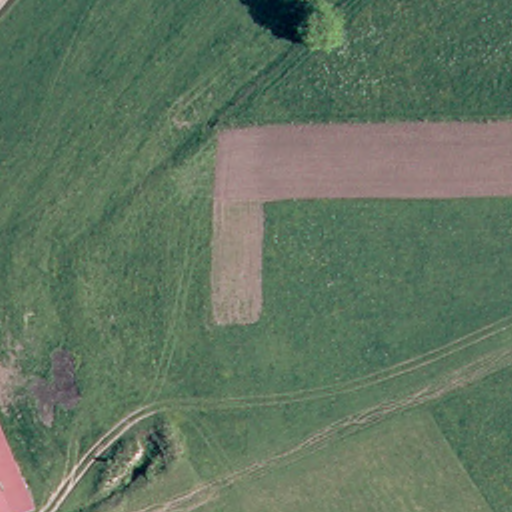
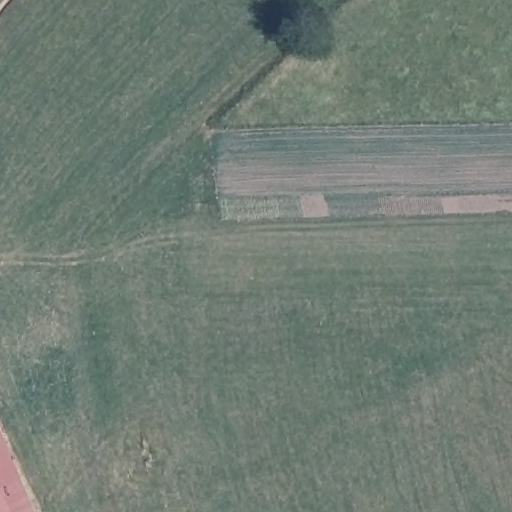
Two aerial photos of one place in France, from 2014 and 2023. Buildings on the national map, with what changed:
unchanged [(34,512),(0,512),(0,428),(35,511),(34,512)]

